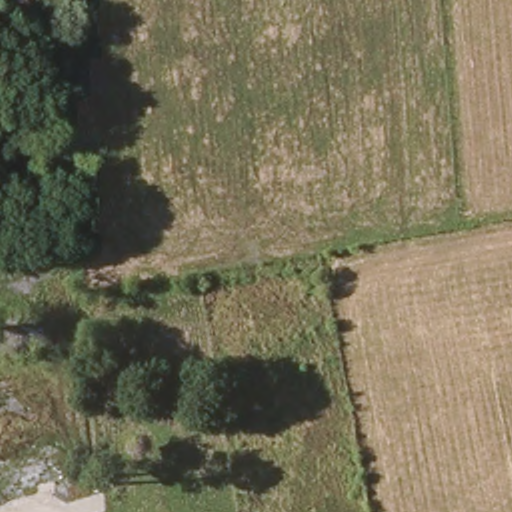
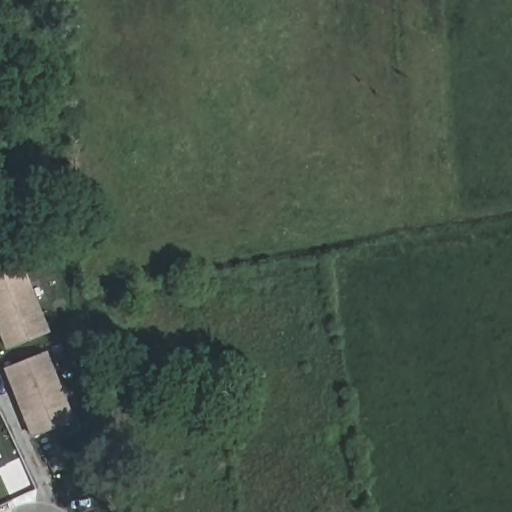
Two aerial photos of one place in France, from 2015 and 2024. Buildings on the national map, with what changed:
new [(24,265),(50,332),(5,350),(0,337),(0,274),(24,265)]
new [(31,438),(4,368),(47,351),(74,420),(31,438)]

